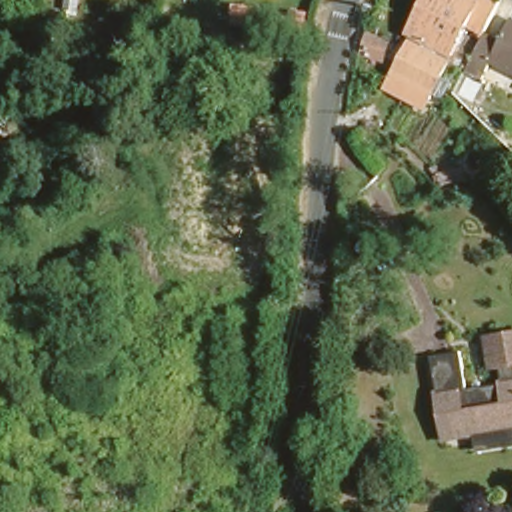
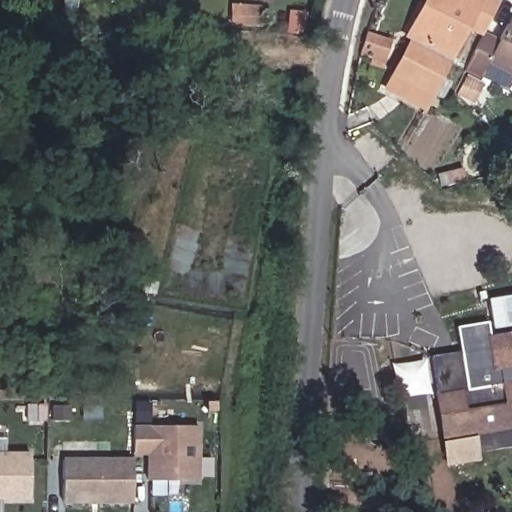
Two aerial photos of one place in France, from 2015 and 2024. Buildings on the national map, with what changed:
unchanged [(413,37),(408,34),(424,4),(426,0),(476,0),(479,2),(480,0),(495,0),(500,2),(483,34),(483,35),(466,26),(447,62),(438,80),(431,94),(424,107),(387,87),(394,74),(407,49),(410,43),(413,37)]
unchanged [(260,23),(232,21),(232,8),(261,10),(260,23)]
unchanged [(286,25),(268,24),(269,16),(286,17),(286,25)]
unchanged [(481,80),(465,72),(477,46),(483,35),(483,34),(499,41),(507,24),(510,20),(512,20),(512,73),(490,62),(481,80)]
unchanged [(466,179),(440,185),(437,175),(463,169),(466,179)]
unchanged [(471,430),(438,436),(425,351),(456,347),(462,385),(496,379),(494,362),(486,363),(481,333),(512,328),(512,438),(473,445),(471,430)]
new [(198,482),(145,481),(145,456),(132,456),(132,426),(197,426),(198,482)]
new [(0,501),(0,452),(30,452),(30,501),(0,501)]
new [(61,503),(61,457),(132,457),(132,504),(61,503)]
unchanged [(512,492),(512,507),(505,497),(512,492)]

